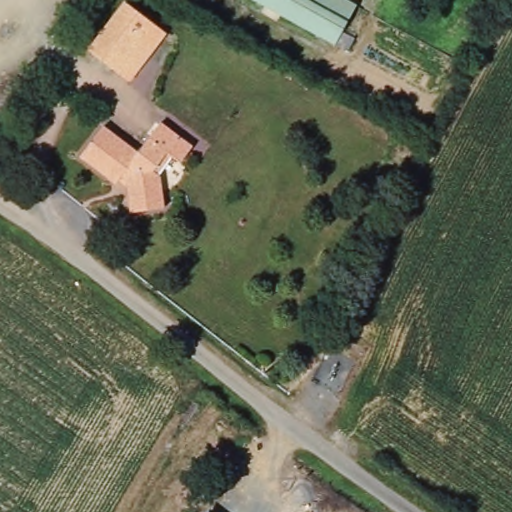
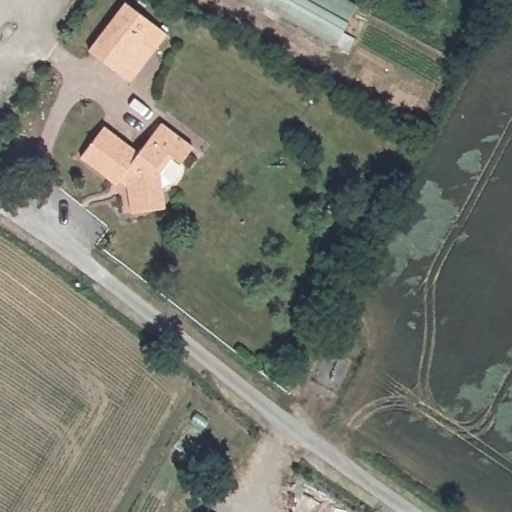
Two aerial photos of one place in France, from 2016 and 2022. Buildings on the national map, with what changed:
unchanged [(332,38),(263,0),(352,0),(332,38)]
unchanged [(87,57),(124,9),(160,36),(152,46),(145,41),(116,80),(105,71),(87,57)]
unchanged [(116,80),(145,41),(152,46),(160,36),(168,41),(131,91),(116,80)]
unchanged [(104,125),(137,151),(159,123),(190,147),(177,164),(164,155),(151,172),(159,177),(163,207),(143,209),(140,195),(129,197),(127,181),(120,176),(115,183),(80,156),(104,125)]

